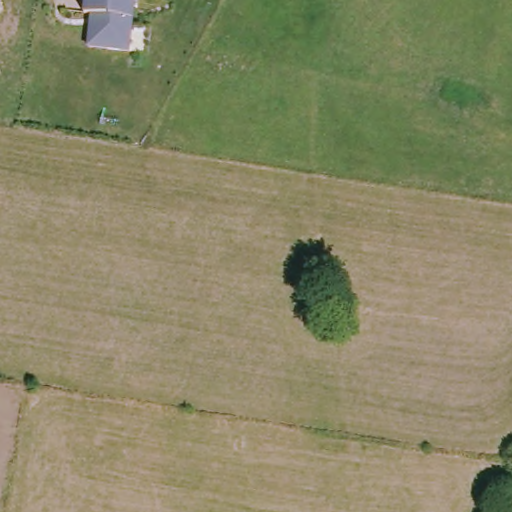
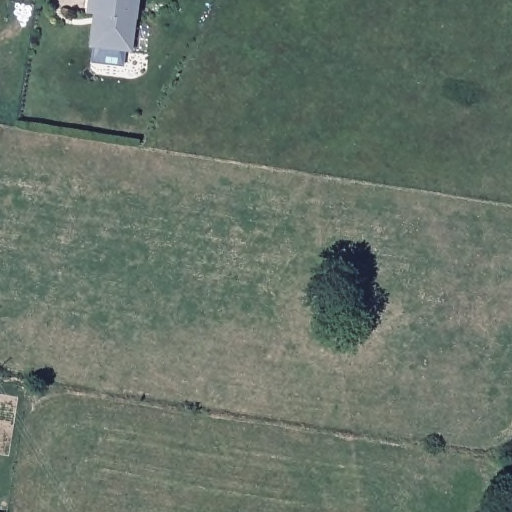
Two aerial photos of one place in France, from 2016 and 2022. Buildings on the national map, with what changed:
unchanged [(87,15),(89,0),(138,0),(132,52),(92,47),(94,24),(95,16),(87,15)]

